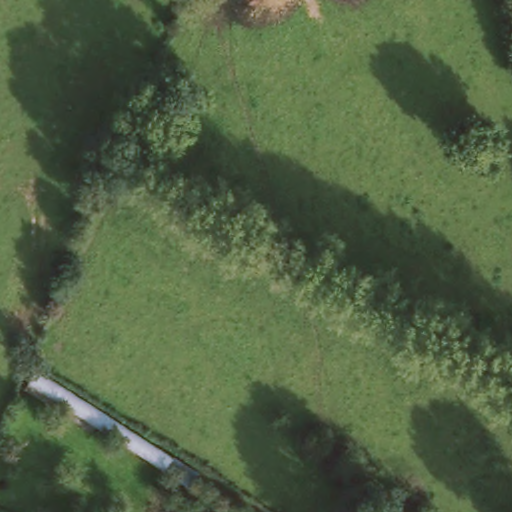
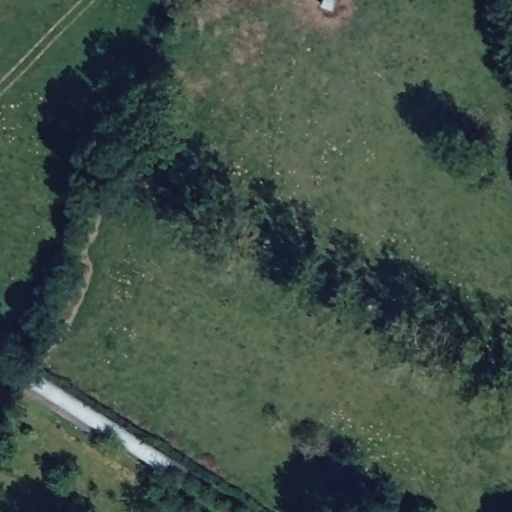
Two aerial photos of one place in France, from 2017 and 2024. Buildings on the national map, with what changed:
[]

